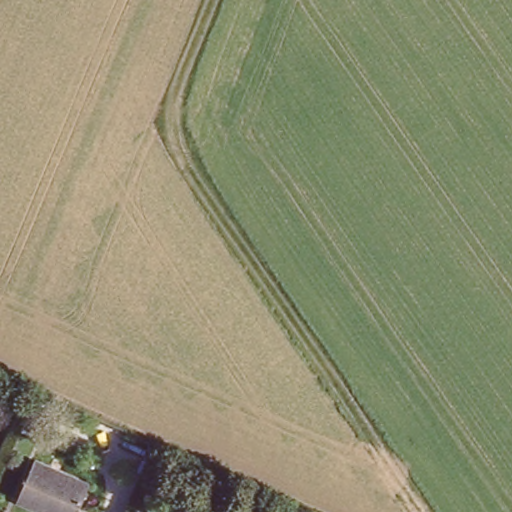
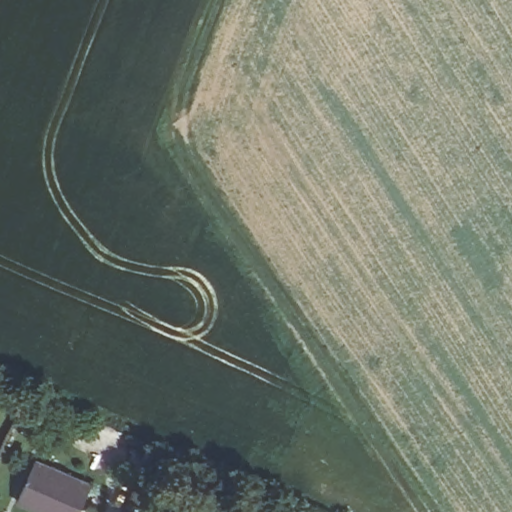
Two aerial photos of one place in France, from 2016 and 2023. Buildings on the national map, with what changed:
unchanged [(33,457),(89,483),(76,512),(43,512),(13,498),(33,457)]

